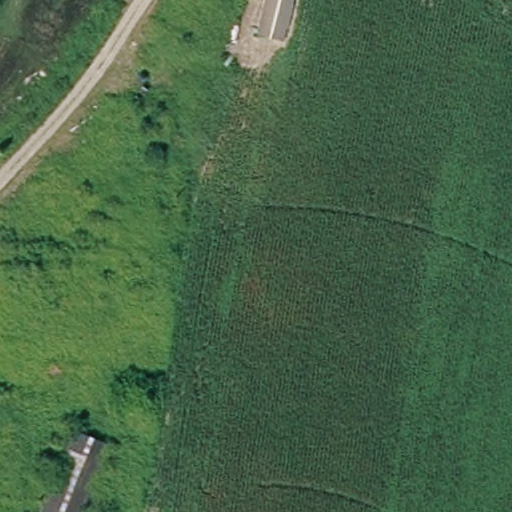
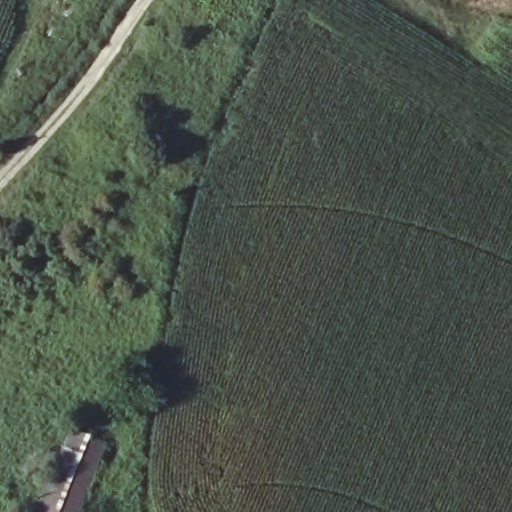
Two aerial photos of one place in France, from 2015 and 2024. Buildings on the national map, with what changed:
unchanged [(107,451),(77,512),(32,512),(71,433),(107,451)]

